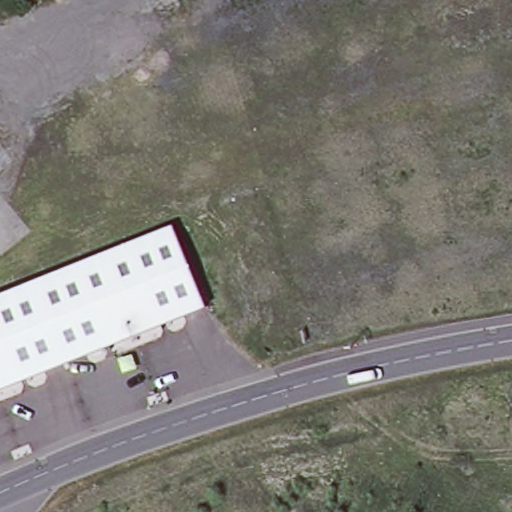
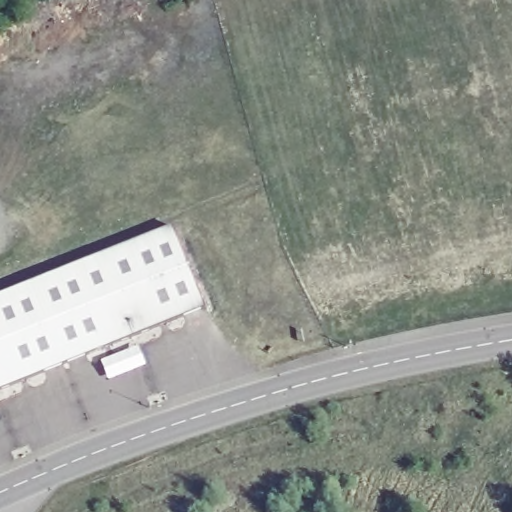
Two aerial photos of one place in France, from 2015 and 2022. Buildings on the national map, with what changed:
unchanged [(172,226),(205,307),(0,389),(0,295),(172,226)]

